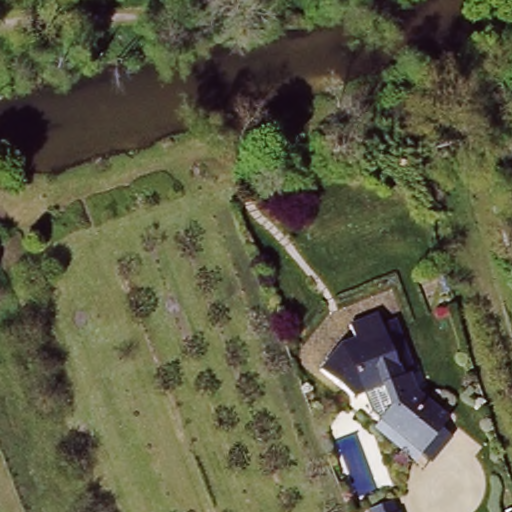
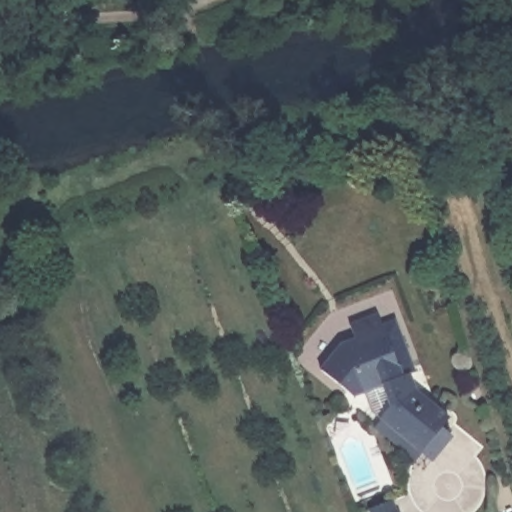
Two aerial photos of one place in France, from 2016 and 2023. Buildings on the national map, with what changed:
unchanged [(336,348),(351,342),(348,328),(377,316),(381,323),(393,318),(415,372),(407,375),(414,392),(449,421),(420,456),(374,419),(366,397),(353,402),(319,372),(336,348)]
unchanged [(392,501),(395,511),(400,511),(401,512),(369,512),(367,508),(392,501)]

